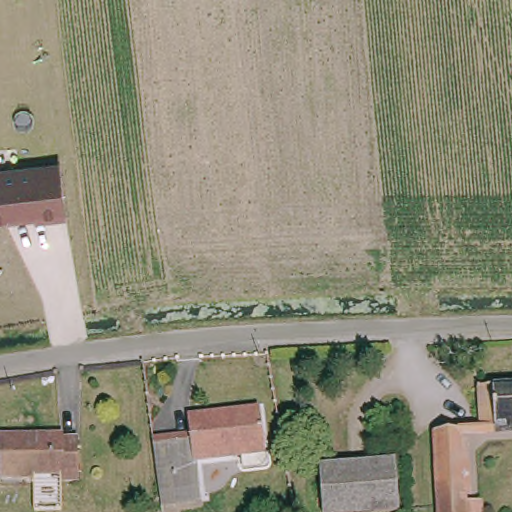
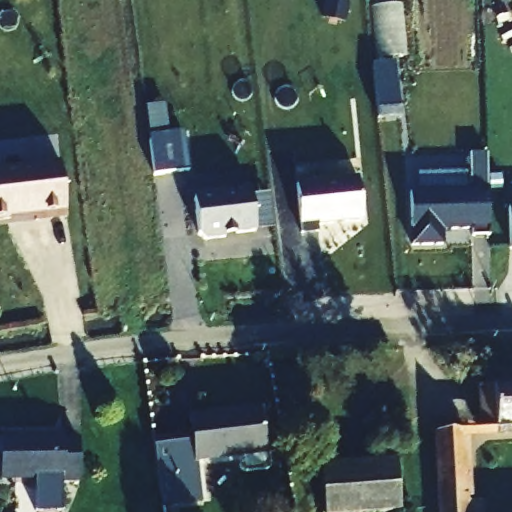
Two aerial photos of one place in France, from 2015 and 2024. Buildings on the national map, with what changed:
new [(148,141),(184,137),(188,172),(153,176),(148,141)]
unchanged [(0,233),(0,157),(21,154),(23,169),(63,165),(69,225),(0,233)]
new [(358,181),(364,223),(318,227),(318,233),(304,234),(299,185),(358,181)]
new [(249,188),(256,235),(202,239),(196,194),(249,188)]
new [(410,193),(488,190),(489,237),(472,238),(472,229),(442,230),(443,245),(412,246),(410,193)]
unchanged [(476,384),(512,383),(512,425),(478,426),(476,384)]
unchanged [(153,437),(194,434),(193,413),(262,404),(266,449),(203,457),(206,484),(208,504),(163,508),(153,437)]
unchanged [(433,428),(462,426),(466,512),(436,512),(433,428)]
unchanged [(70,484),(68,474),(13,475),(10,436),(43,433),(68,431),(69,439),(83,438),(84,482),(78,483),(70,484)]
unchanged [(399,457),(402,509),(355,512),(328,512),(323,462),(399,457)]

